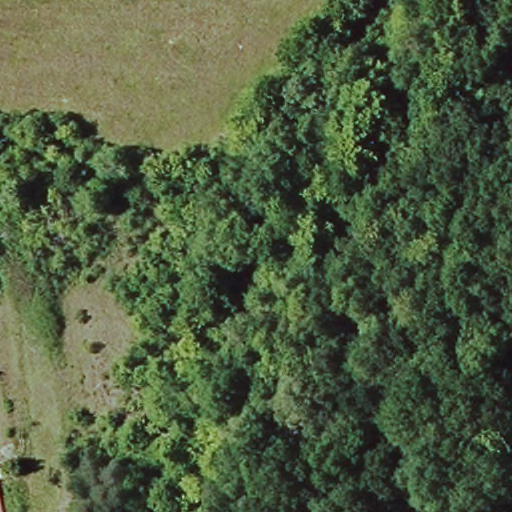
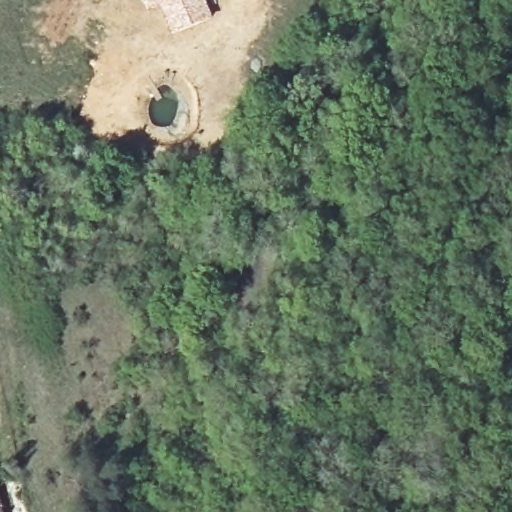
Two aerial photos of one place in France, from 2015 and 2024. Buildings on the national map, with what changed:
new [(213,18),(173,36),(157,4),(156,0),(206,0),(213,18)]

